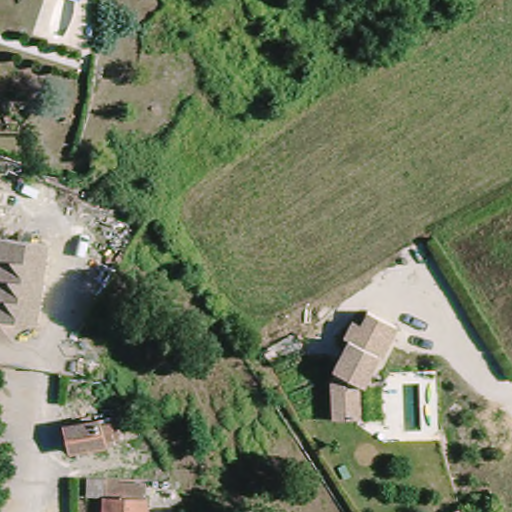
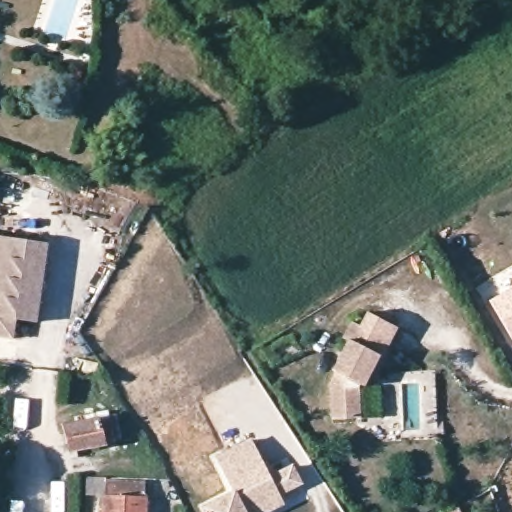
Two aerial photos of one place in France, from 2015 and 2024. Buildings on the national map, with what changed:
unchanged [(0,345),(0,236),(53,243),(40,327),(18,323),(17,325),(15,347),(0,345)]
new [(512,340),(489,302),(512,289),(512,340)]
unchanged [(342,345),(350,328),(359,333),(366,318),(395,332),(380,363),(377,362),(363,392),(359,390),(358,392),(360,424),(333,426),(330,390),(336,378),(333,377),(337,367),(342,357),(347,347),(342,345)]
unchanged [(104,447),(67,455),(62,433),(99,423),(104,447)]
new [(203,512),(200,507),(230,492),(213,458),(249,438),(269,475),(292,464),(302,484),(309,498),(284,512),(203,512)]
unchanged [(147,510),(148,510),(148,512),(106,512),(106,510),(90,509),(90,490),(147,492),(147,510)]

